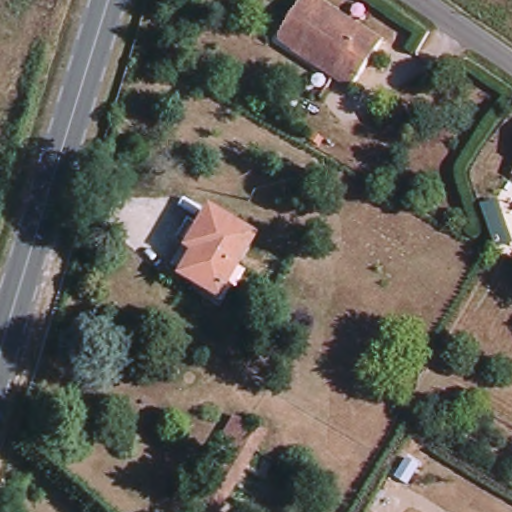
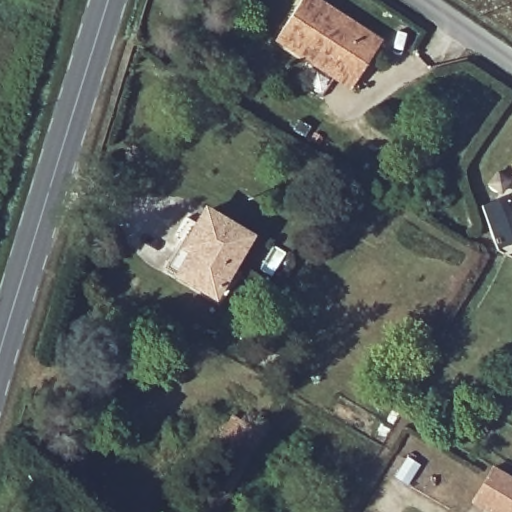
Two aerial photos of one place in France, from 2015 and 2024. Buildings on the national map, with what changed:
unchanged [(346,93),(272,45),(302,0),(307,0),(377,46),(346,93)]
unchanged [(162,266),(189,221),(197,224),(205,212),(247,237),(212,297),(162,266)]
unchanged [(192,512),(247,420),(265,430),(216,512),(192,512)]
unchanged [(411,488),(392,477),(408,450),(426,462),(411,488)]
new [(492,465),(512,477),(512,512),(485,512),(470,503),(492,465)]

